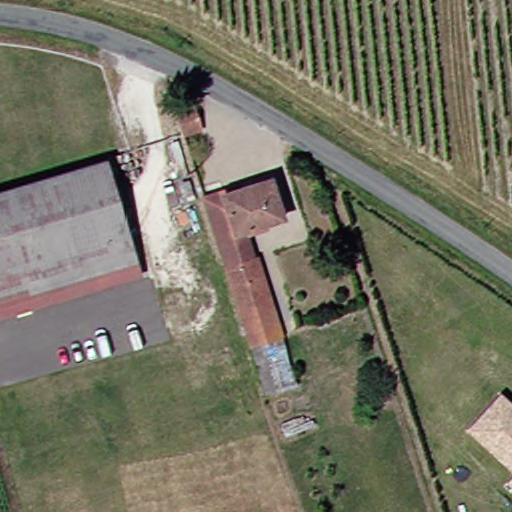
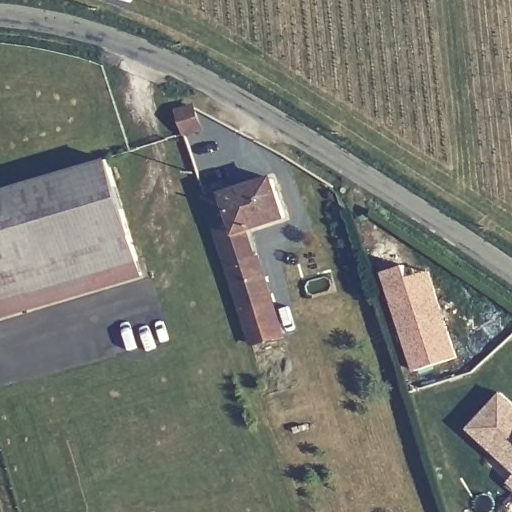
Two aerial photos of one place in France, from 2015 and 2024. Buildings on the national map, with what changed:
unchanged [(140,260),(34,291),(38,305),(4,315),(0,304),(0,195),(111,160),(140,260)]
unchanged [(289,217),(270,223),(270,231),(254,236),(260,257),(264,260),(286,333),(275,337),(280,352),(277,356),(287,390),(269,397),(206,200),(277,179),(289,217)]
new [(428,270),(456,357),(415,370),(382,271),(403,265),(407,277),(428,270)]
unchanged [(467,428),(500,393),(512,404),(512,471),(467,428)]
unchanged [(505,482),(512,475),(512,488),(505,482)]

